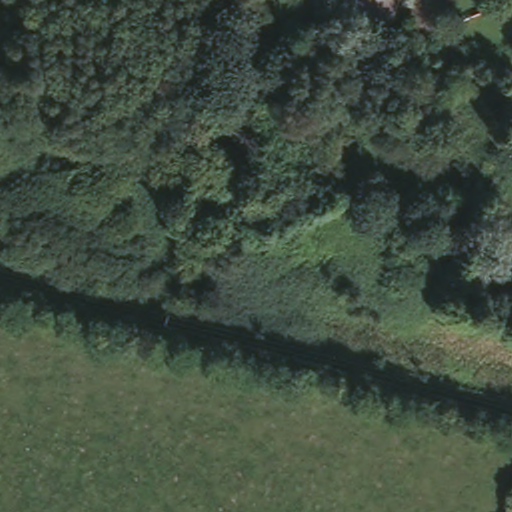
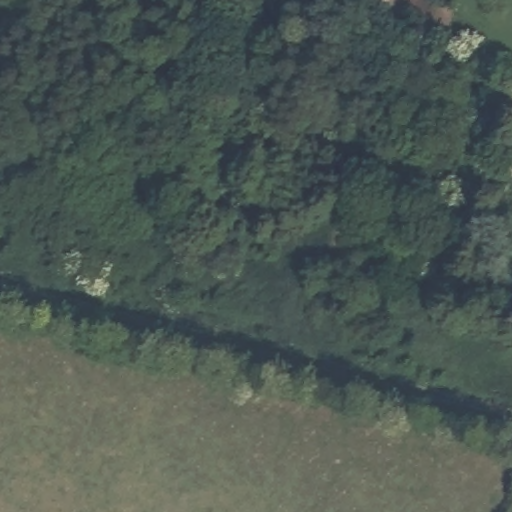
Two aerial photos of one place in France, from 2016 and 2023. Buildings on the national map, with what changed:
unchanged [(269,58),(267,71),(261,72),(254,132),(226,129),(232,53),(269,58)]

